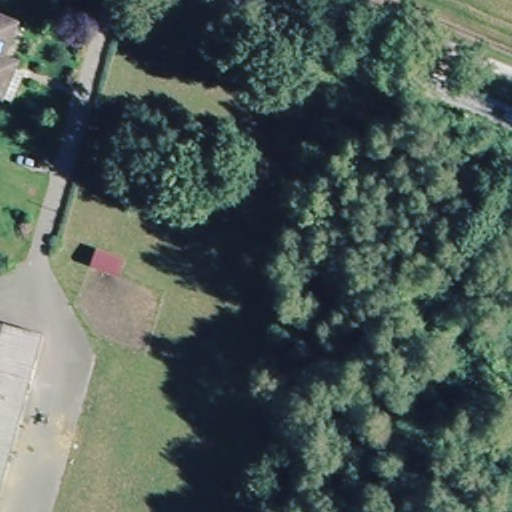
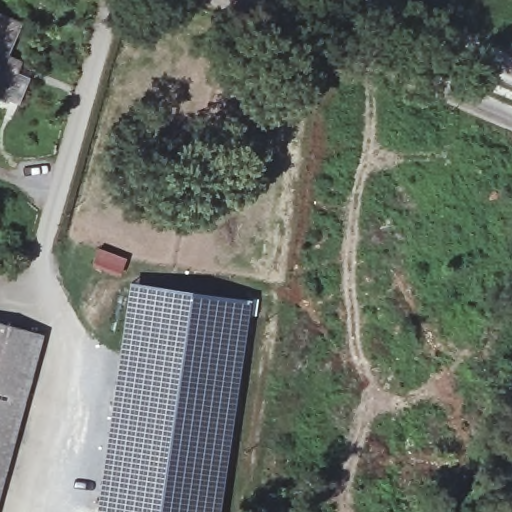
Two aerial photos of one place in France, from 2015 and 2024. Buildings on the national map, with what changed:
unchanged [(22,72),(10,100),(0,96),(0,12),(16,19),(5,48),(23,56),(17,70),(22,72)]
new [(98,248),(126,258),(120,274),(91,263),(98,248)]
new [(256,300),(254,314),(250,313),(245,335),(230,439),(219,512),(179,512),(181,506),(190,456),(190,449),(185,429),(181,422),(171,407),(160,401),(140,388),(130,379),(124,369),(122,365),(117,364),(128,282),(256,300)]
unchanged [(41,333),(0,496),(0,323),(41,333)]

